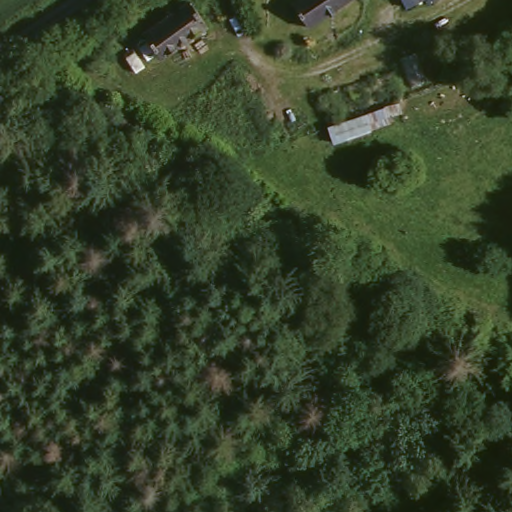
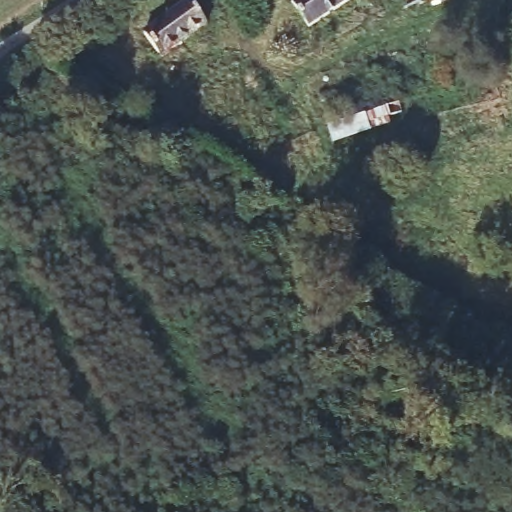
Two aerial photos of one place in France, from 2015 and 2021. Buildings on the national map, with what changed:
unchanged [(350,0),(304,27),(289,3),(294,0),(350,0)]
unchanged [(403,0),(408,0),(403,2),(403,0)]
unchanged [(186,5),(202,27),(153,60),(137,39),(186,5)]

